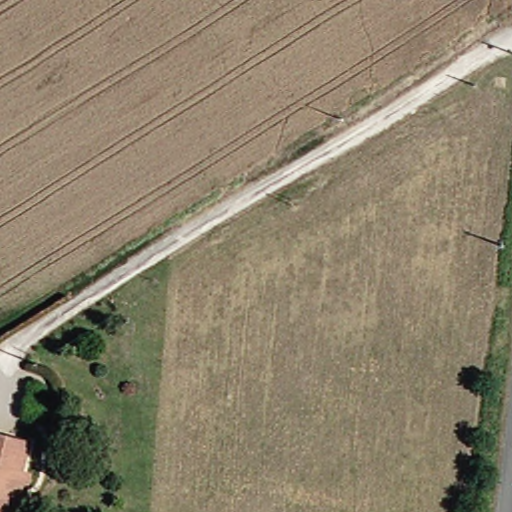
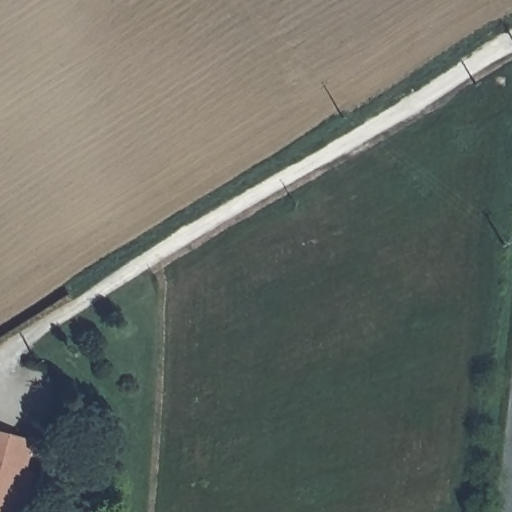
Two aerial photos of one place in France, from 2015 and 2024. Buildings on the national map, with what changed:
unchanged [(504,91),(504,78),(512,78),(512,91),(504,91)]
unchanged [(0,512),(0,433),(32,437),(28,468),(35,469),(30,512),(0,512)]

